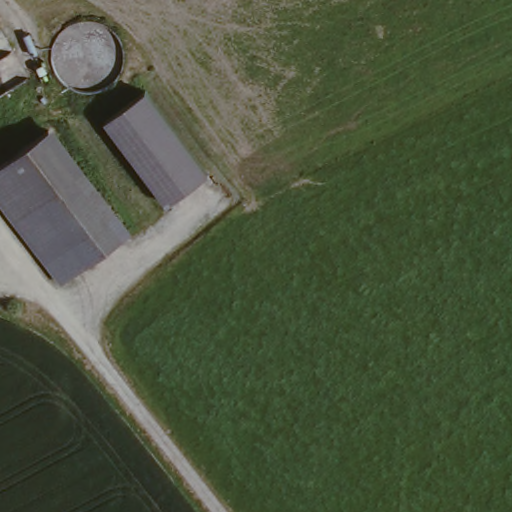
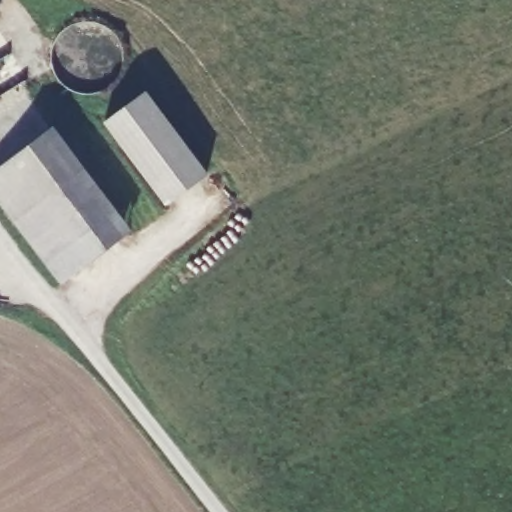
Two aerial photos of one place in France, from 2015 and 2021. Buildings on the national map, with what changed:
unchanged [(114,111),(154,85),(212,170),(173,197),(114,111)]
unchanged [(0,172),(63,128),(141,230),(63,282),(0,197),(0,172)]

